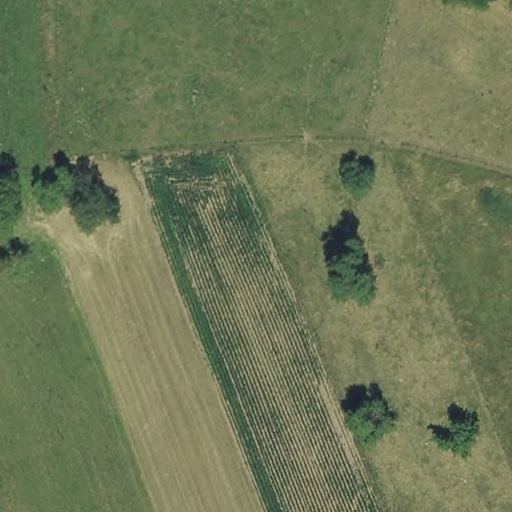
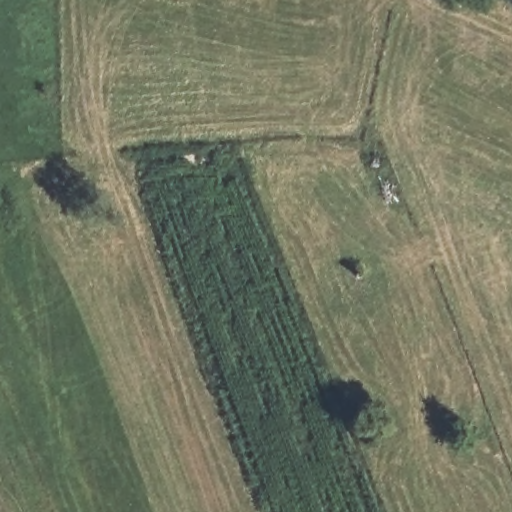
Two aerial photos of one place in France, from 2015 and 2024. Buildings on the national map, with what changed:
[]

